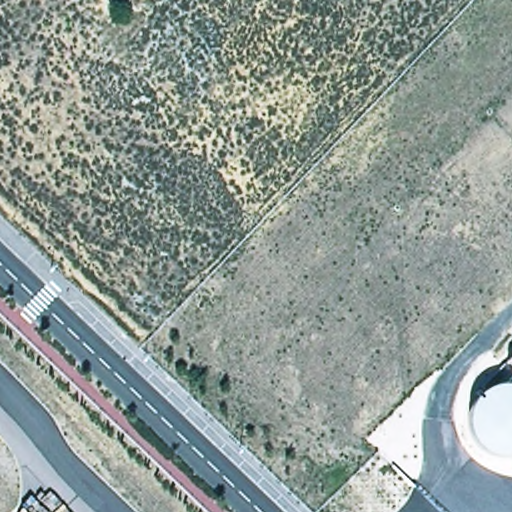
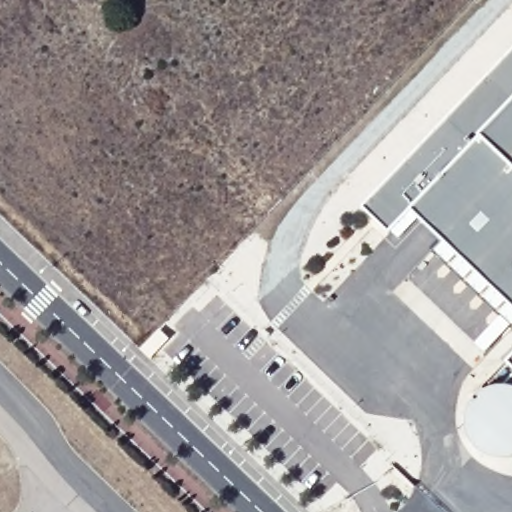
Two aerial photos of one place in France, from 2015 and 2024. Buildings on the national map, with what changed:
new [(390,232),(363,206),(512,50),(512,309),(410,211),(390,232)]
new [(512,359),(512,370),(507,365),(512,359)]
new [(506,387),(512,381),(512,388),(509,387),(506,387)]

